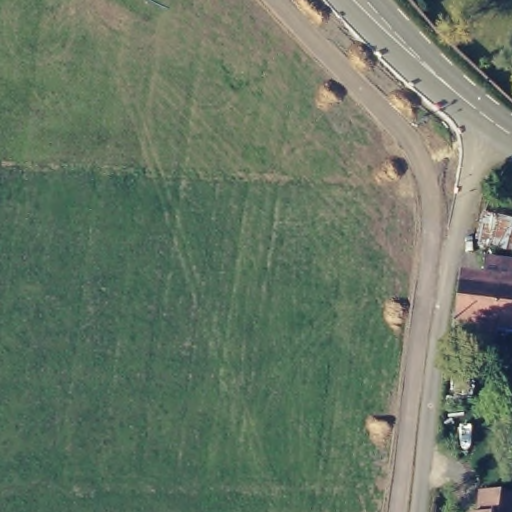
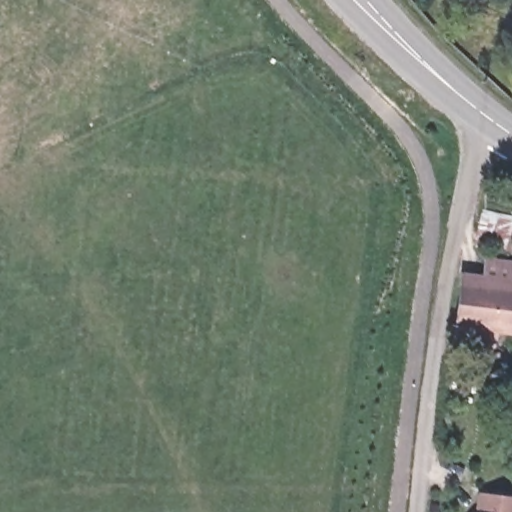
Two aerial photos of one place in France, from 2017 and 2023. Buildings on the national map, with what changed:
unchanged [(478,281),(486,264),(512,268),(512,332),(478,325),(474,338),(449,333),(463,280),(478,281)]
unchanged [(462,489),(512,501),(512,512),(455,512),(457,512),(462,489)]

